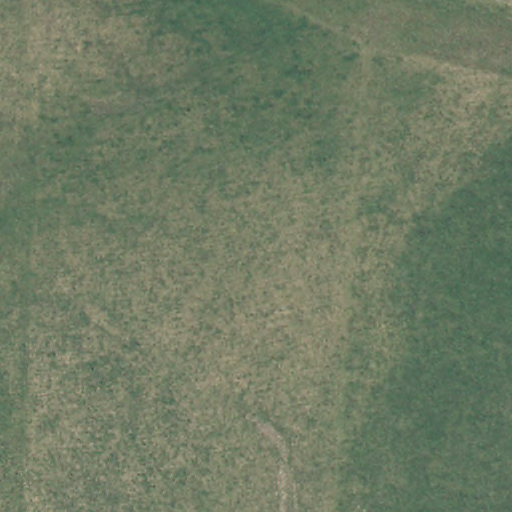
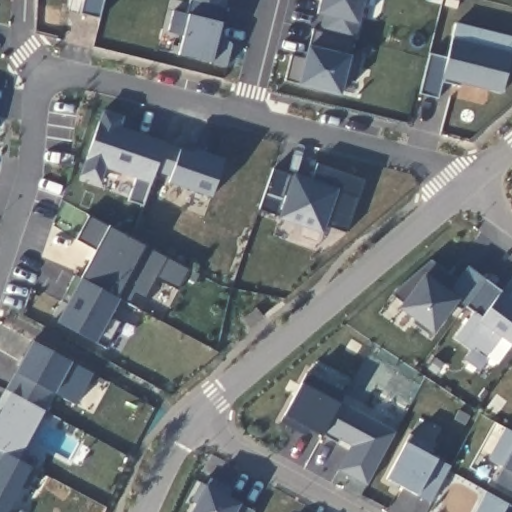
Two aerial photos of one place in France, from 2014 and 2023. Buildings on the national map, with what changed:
new [(99,20),(79,15),(82,0),(104,0),(99,20)]
new [(217,22),(223,23),(219,38),(232,43),(225,68),(210,64),(176,56),(181,36),(166,32),(172,11),(186,14),(189,0),(223,0),(217,22)]
new [(359,25),(351,53),(360,56),(354,83),(346,80),(342,95),(298,83),(286,79),(292,54),(305,58),(308,45),(313,29),(318,30),(322,17),(318,16),(321,0),(363,0),(359,25)]
new [(443,80),(437,98),(418,93),(428,53),(446,59),(455,24),(512,37),(512,56),(503,93),(443,80)]
new [(211,197),(169,183),(171,177),(153,173),(143,205),(129,201),(135,179),(107,171),(101,186),(78,178),(101,111),(125,118),(121,128),(180,150),(223,164),(211,197)]
new [(345,233),(326,227),(323,234),(259,212),(275,168),(293,175),(294,172),(311,179),(317,164),(364,180),(345,233)]
new [(177,290),(156,279),(144,302),(136,298),(133,303),(121,297),(81,276),(94,254),(74,239),(86,215),(188,270),(177,290)]
new [(457,282),(468,266),(484,280),(462,311),(455,308),(434,335),(431,333),(429,336),(411,325),(413,321),(398,310),(402,304),(392,295),(431,261),(457,282)]
new [(109,318),(119,324),(103,350),(92,344),(56,324),(66,305),(60,300),(74,274),(81,276),(121,297),(109,318)]
new [(471,306),(491,279),(508,291),(505,295),(512,301),(512,341),(507,337),(493,356),(479,346),(476,350),(460,338),(479,312),(471,306)]
new [(75,405),(53,394),(17,461),(0,452),(0,397),(16,372),(33,342),(73,364),(93,375),(75,405)]
new [(311,435),(286,422),(312,373),(351,394),(328,436),(315,429),(311,435)]
new [(367,485),(339,470),(351,447),(340,440),(338,442),(328,436),(345,406),(395,432),(367,485)]
new [(512,488),(502,483),(510,468),(495,460),(512,429),(512,488)]
new [(438,446),(434,454),(457,467),(437,503),(392,479),(416,434),(438,446)]
new [(190,512),(194,505),(189,500),(200,483),(205,486),(209,478),(224,486),(221,494),(241,505),(236,512),(190,512)]
new [(512,503),(512,512),(482,512),(494,492),(512,503)]

